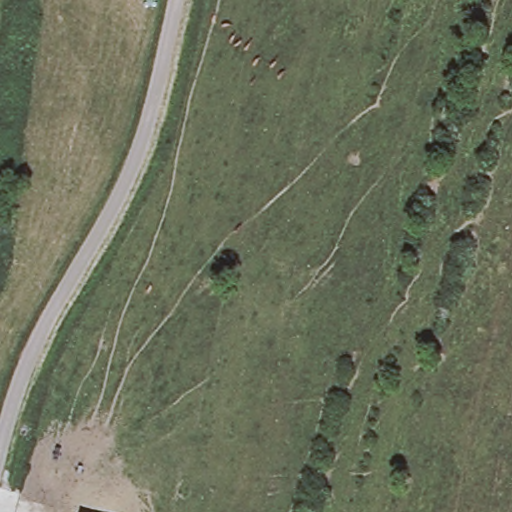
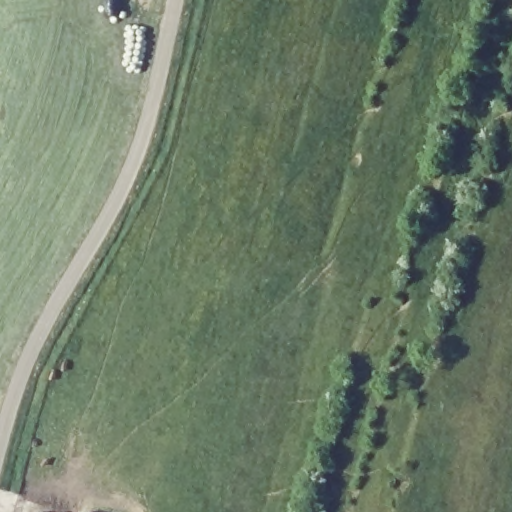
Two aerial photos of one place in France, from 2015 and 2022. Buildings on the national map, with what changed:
unchanged [(92,512),(82,512),(82,509),(92,512)]

